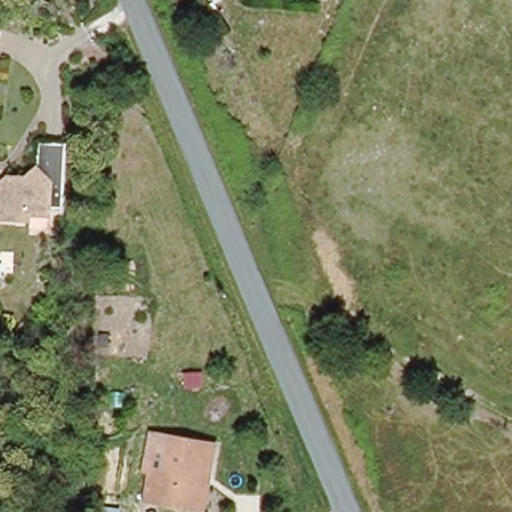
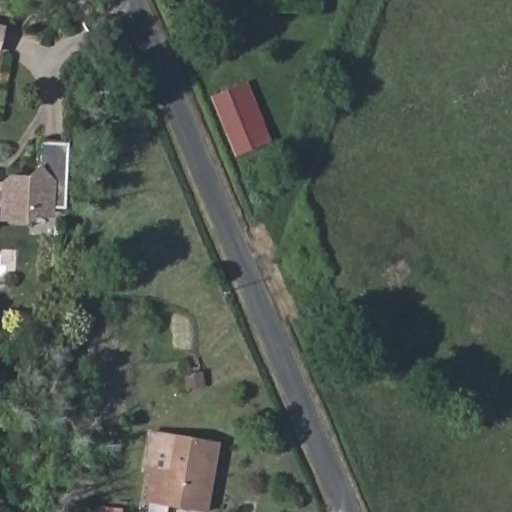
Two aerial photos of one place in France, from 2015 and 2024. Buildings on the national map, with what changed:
unchanged [(0,27),(2,27),(0,40),(0,27)]
new [(209,96),(247,81),(272,141),(234,156),(209,96)]
unchanged [(47,209),(29,208),(28,215),(0,213),(0,177),(6,172),(24,173),(36,161),(37,137),(65,138),(62,203),(47,203),(47,209)]
unchanged [(207,509),(156,502),(160,468),(149,467),(154,431),(176,434),(216,440),(207,509)]
new [(101,505),(122,509),(122,512),(100,512),(101,505)]

